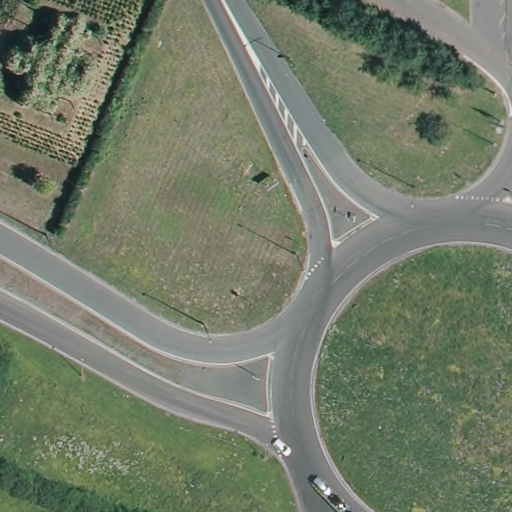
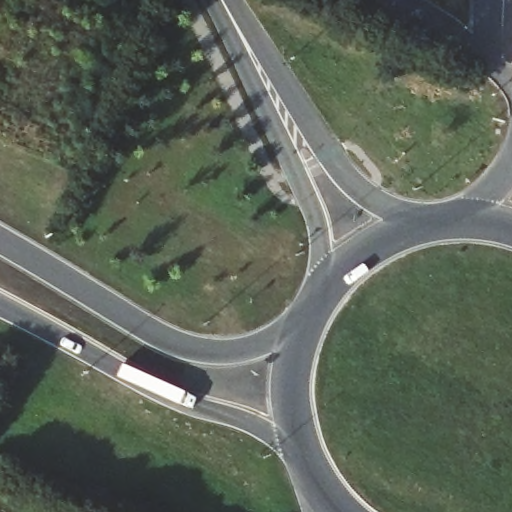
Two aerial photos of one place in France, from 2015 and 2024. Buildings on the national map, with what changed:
[]

